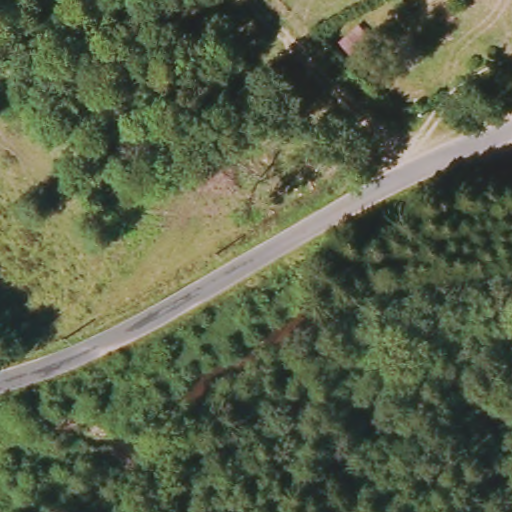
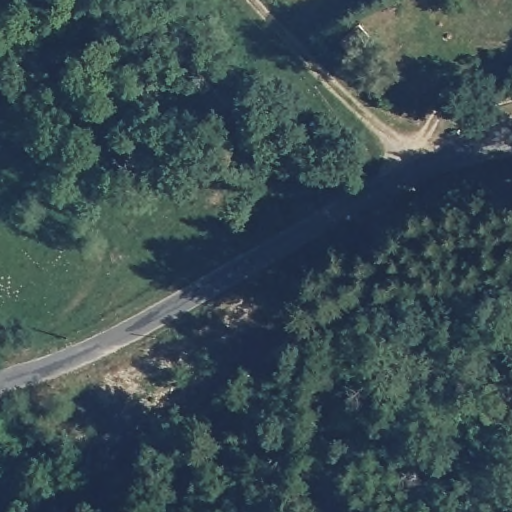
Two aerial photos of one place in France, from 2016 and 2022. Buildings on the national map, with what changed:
unchanged [(361,28),(371,40),(350,57),(341,44),(361,28)]

